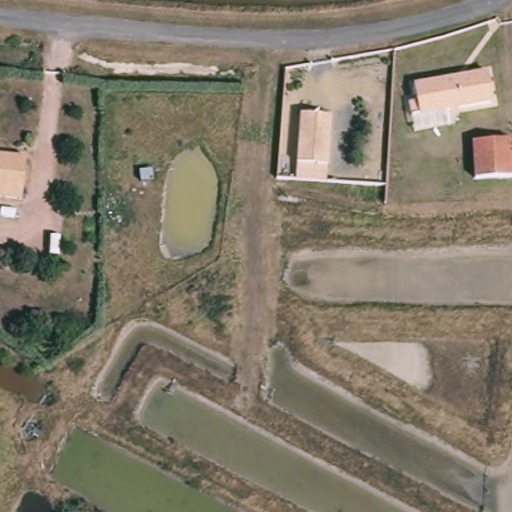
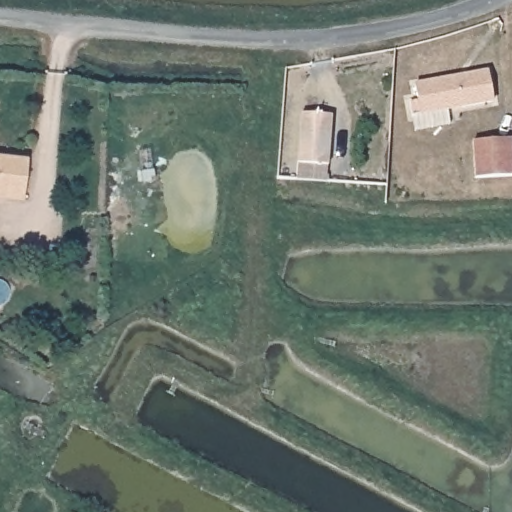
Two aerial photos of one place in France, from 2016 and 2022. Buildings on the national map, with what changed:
unchanged [(486,75),(492,106),(409,123),(406,109),(415,107),(412,89),(486,75)]
unchanged [(333,119),(332,168),(301,167),(301,119),(333,119)]
unchanged [(510,142),(512,170),(512,178),(475,180),(473,145),(510,142)]
unchanged [(25,205),(0,201),(0,157),(31,162),(25,205)]

